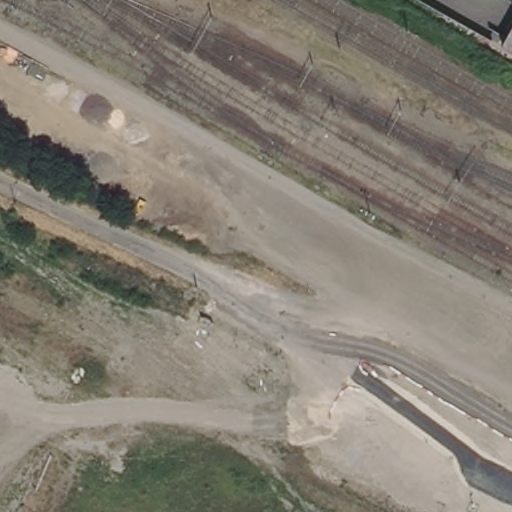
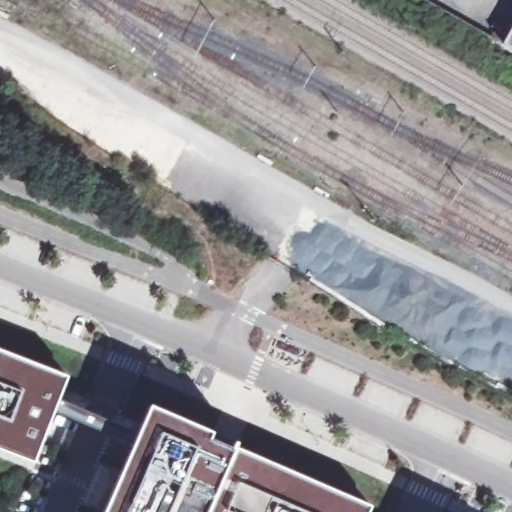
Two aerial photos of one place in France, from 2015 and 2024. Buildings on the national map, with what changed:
unchanged [(502,46),(512,27),(512,51),(502,46)]
new [(34,462),(0,449),(0,350),(67,377),(34,462)]
new [(151,402),(217,429),(214,436),(236,445),(208,512),(104,512),(151,402)]
new [(236,445),(237,442),(374,504),(371,512),(208,512),(236,445)]

